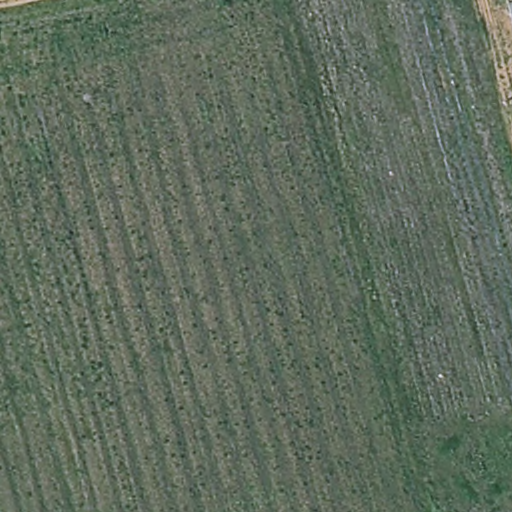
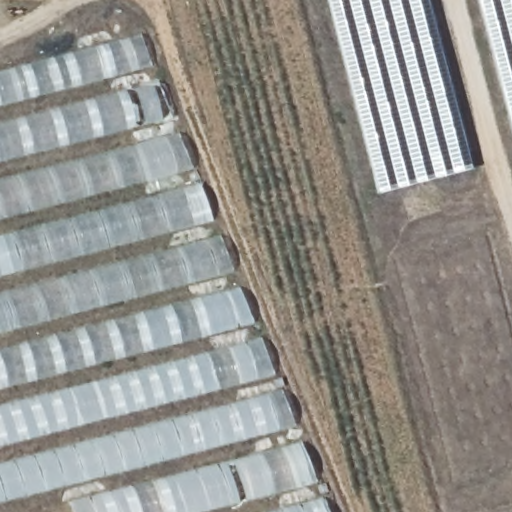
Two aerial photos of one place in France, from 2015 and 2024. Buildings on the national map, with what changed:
new [(326,0),(428,0),(473,169),(376,192),(326,0)]
new [(478,0),(512,0),(512,135),(478,0)]
new [(64,486),(0,504),(0,73),(141,36),(327,512),(73,512),(64,486)]

